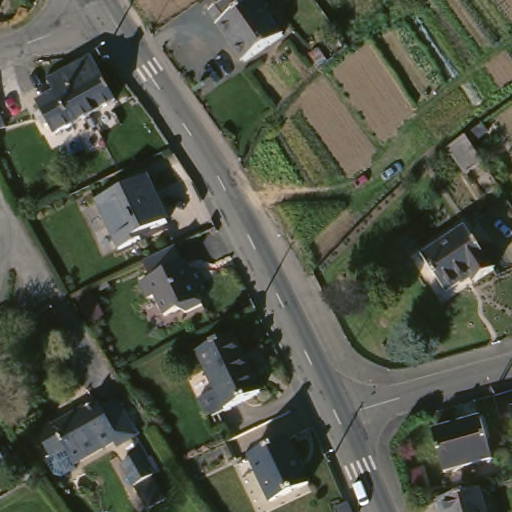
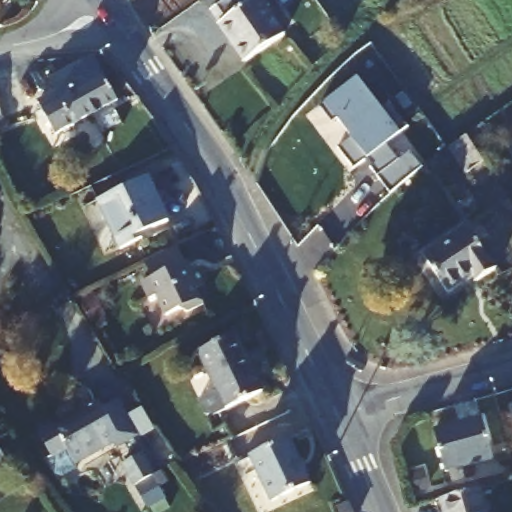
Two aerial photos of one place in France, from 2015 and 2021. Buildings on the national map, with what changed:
unchanged [(254,57),(223,17),(227,13),(220,2),(222,0),(274,0),(292,28),(254,57)]
unchanged [(52,110),(47,100),(64,91),(58,79),(101,57),(124,103),(81,125),(64,134),(57,120),(52,123),(46,113),(52,110)]
new [(370,168),(372,166),(366,159),(353,169),(338,149),(351,139),(335,119),(332,122),(320,107),(325,103),(357,78),(382,110),(388,104),(407,128),(400,134),(386,145),(398,160),(410,152),(421,168),(390,193),(370,168)]
unchanged [(5,127),(0,128),(0,115),(5,127)]
unchanged [(437,153),(455,140),(469,159),(473,166),(457,178),(437,153)]
unchanged [(165,207),(162,208),(168,222),(146,232),(146,230),(139,233),(142,240),(122,250),(99,201),(149,178),(155,193),(158,191),(165,207)]
unchanged [(29,217),(39,211),(48,229),(39,234),(29,217)]
unchanged [(502,269),(479,287),(472,279),(448,295),(426,260),(473,227),(502,269)]
unchanged [(180,247),(192,274),(203,270),(211,288),(203,291),(209,305),(194,314),(186,311),(172,316),(162,296),(154,299),(146,282),(157,278),(149,262),(180,247)]
unchanged [(242,336),(270,394),(217,418),(216,416),(212,418),(204,400),(224,391),(207,352),(242,336)]
unchanged [(105,401),(120,394),(127,396),(135,410),(132,411),(149,441),(126,454),(121,446),(82,468),(74,453),(60,461),(44,431),(61,422),(64,429),(107,405),(105,401)]
unchanged [(433,432),(482,418),(493,460),(445,473),(433,432)]
unchanged [(268,479),(258,456),(297,438),(318,483),(280,501),(268,479)]
unchanged [(0,477),(0,442),(16,468),(0,477)]
unchanged [(144,455),(157,479),(134,490),(122,467),(144,455)]
unchanged [(485,488),(491,512),(449,512),(446,498),(485,488)]
unchanged [(352,512),(339,512),(336,506),(347,502),(352,512)]

